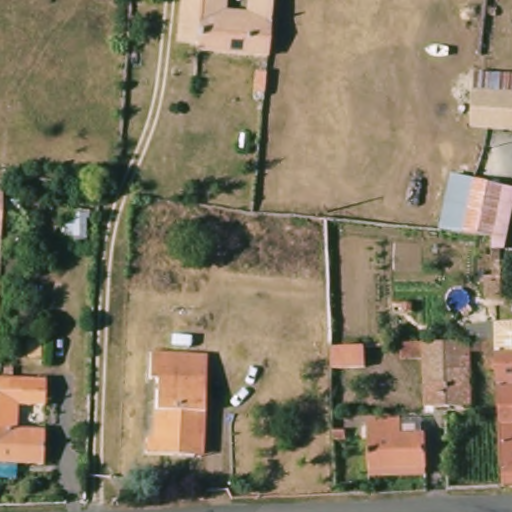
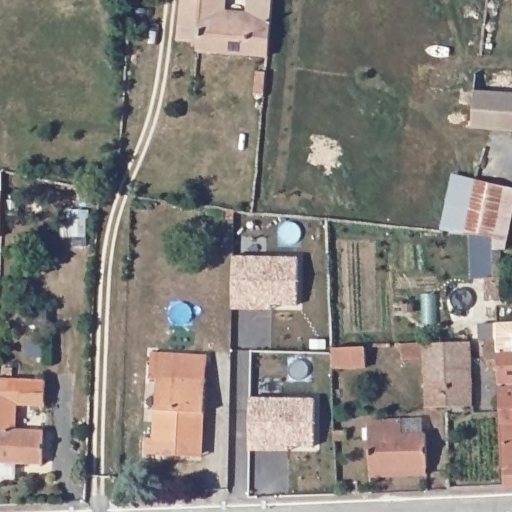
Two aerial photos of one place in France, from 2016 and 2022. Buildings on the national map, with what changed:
unchanged [(132,2),(132,0),(161,0),(161,4),(135,2),(132,2)]
unchanged [(201,54),(201,47),(182,46),(185,0),(228,0),(226,22),(249,25),(250,6),(250,0),(275,0),(272,60),(201,54)]
unchanged [(512,73),(512,131),(471,129),(474,72),(512,73)]
unchanged [(491,254),(492,241),(471,239),(477,185),(512,189),(512,256),(491,254)]
unchanged [(0,238),(0,193),(1,193),(0,238)]
demolished [(200,211),(197,239),(147,233),(150,205),(200,211)]
new [(299,306),(273,306),(273,310),(232,310),(234,256),(298,257),(299,306)]
unchanged [(498,341),(497,320),(512,319),(512,484),(502,485),(500,410),(499,369),(498,350),(498,341)]
unchanged [(364,364),(330,365),(329,342),(364,342),(364,364)]
unchanged [(472,410),(426,411),(424,362),(402,362),(401,347),(471,346),(472,410)]
unchanged [(195,457),(146,455),(146,437),(151,437),(155,382),(151,382),(152,355),(205,356),(203,418),(202,458),(195,457)]
unchanged [(44,412),(13,411),(12,433),(45,434),(44,468),(0,468),(0,384),(45,387),(44,412)]
new [(315,447),(289,447),(289,452),(249,452),(250,397),(315,398),(315,447)]
unchanged [(412,424),(412,428),(422,428),(422,437),(429,437),(428,470),(374,470),(373,422),(412,424)]
unchanged [(345,426),(346,434),(333,435),(333,426),(345,426)]

